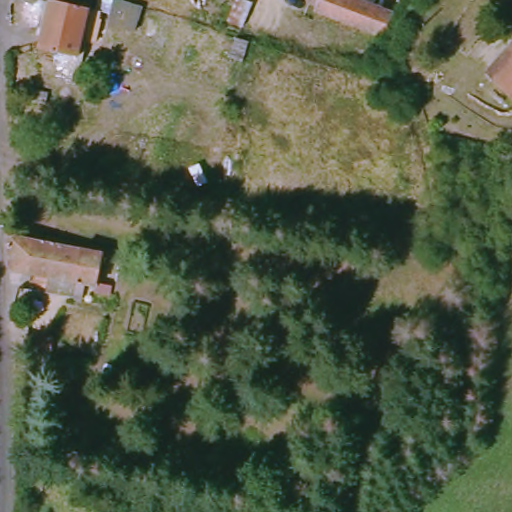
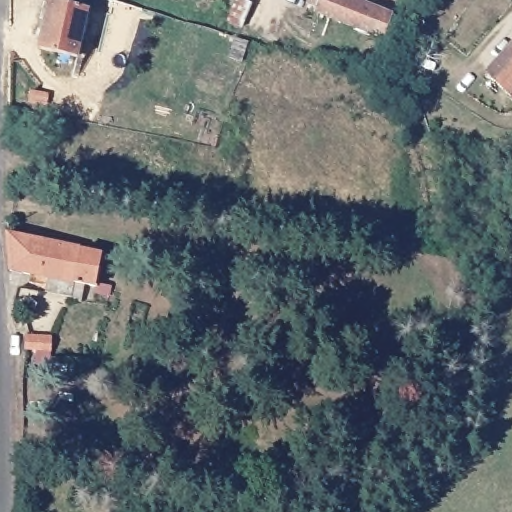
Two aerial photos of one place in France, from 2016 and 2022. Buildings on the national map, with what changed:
unchanged [(10,9),(13,0),(33,0),(28,14),(10,9)]
unchanged [(269,32),(248,22),(245,29),(231,23),(241,0),(255,6),(256,4),(277,14),(269,32)]
unchanged [(376,37),(311,11),(313,7),(303,3),(304,0),(346,0),(385,17),(376,37)]
unchanged [(86,56),(95,24),(92,24),(95,10),(108,14),(115,16),(136,22),(132,39),(115,35),(103,32),(95,58),(86,56)]
unchanged [(32,62),(39,31),(34,30),(37,16),(43,17),(44,13),(83,23),(72,71),(32,62)]
unchanged [(490,68),(512,42),(512,87),(490,68)]
unchanged [(230,62),(234,44),(246,47),(241,64),(230,62)]
unchanged [(10,273),(8,237),(103,255),(96,290),(10,273)]
unchanged [(140,272),(141,263),(156,265),(153,274),(140,272)]
unchanged [(48,368),(34,368),(33,353),(25,353),(25,340),(49,340),(48,353),(48,368)]

